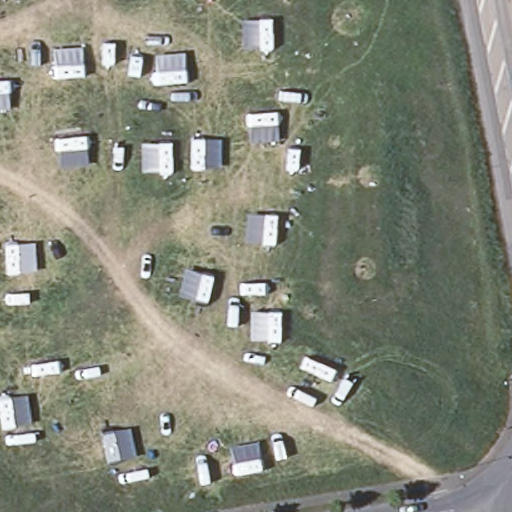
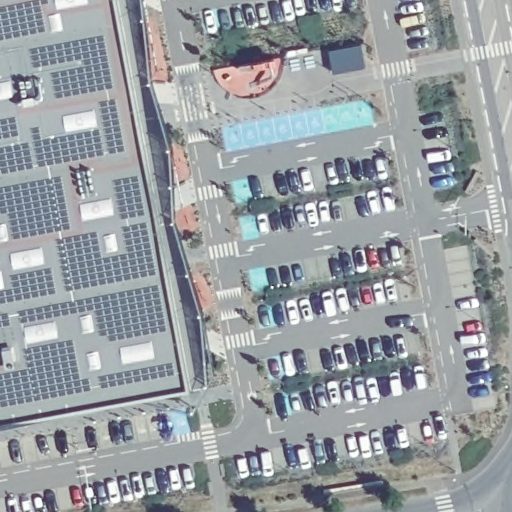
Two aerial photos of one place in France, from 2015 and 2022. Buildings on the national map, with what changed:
new [(0,420),(0,0),(118,0),(189,385),(0,420)]

